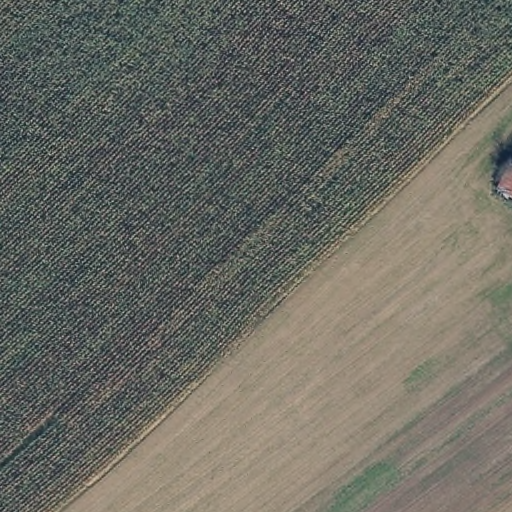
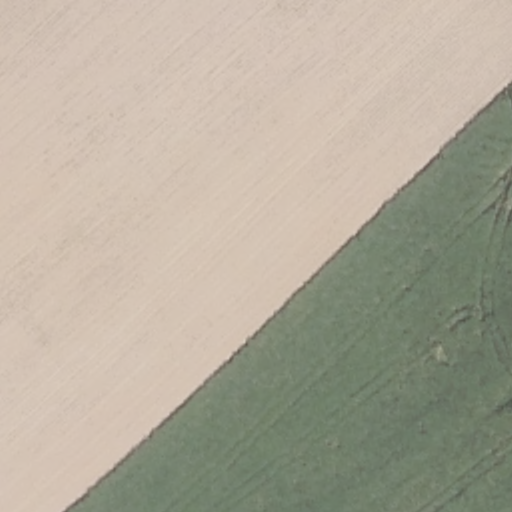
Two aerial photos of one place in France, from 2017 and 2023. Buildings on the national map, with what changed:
unchanged [(491,194),(510,157),(512,158),(512,204),(491,194)]

